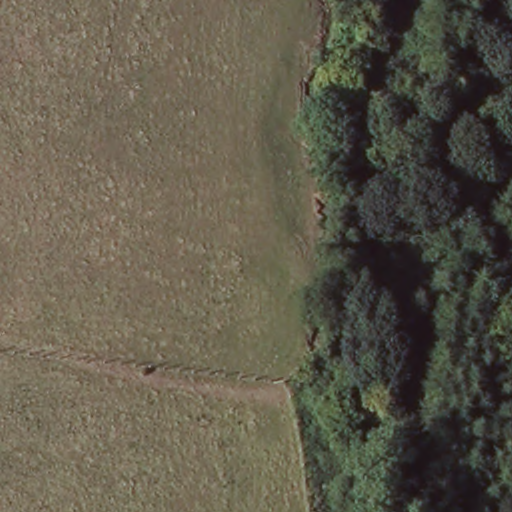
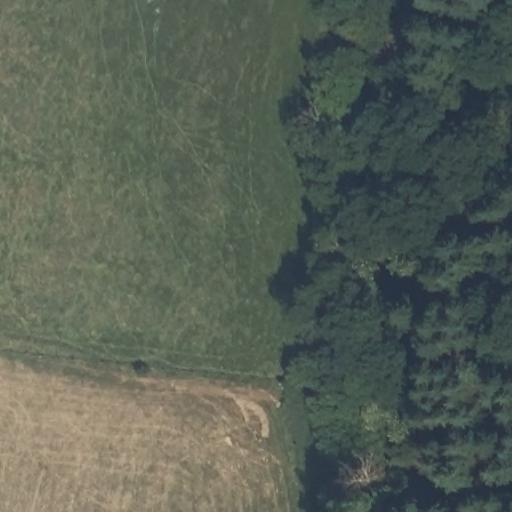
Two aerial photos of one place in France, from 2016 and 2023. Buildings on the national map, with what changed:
[]

